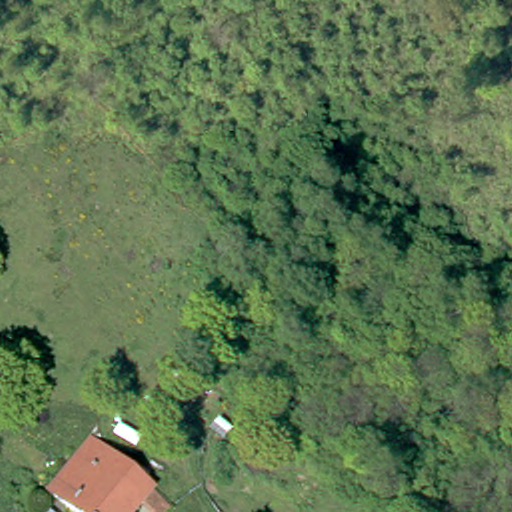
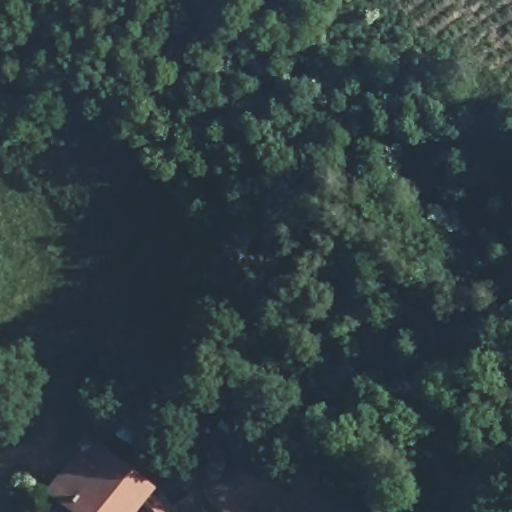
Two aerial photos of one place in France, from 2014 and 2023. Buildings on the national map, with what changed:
unchanged [(79,468),(76,466),(91,446),(154,493),(140,512),(66,512),(53,502),(79,468)]

